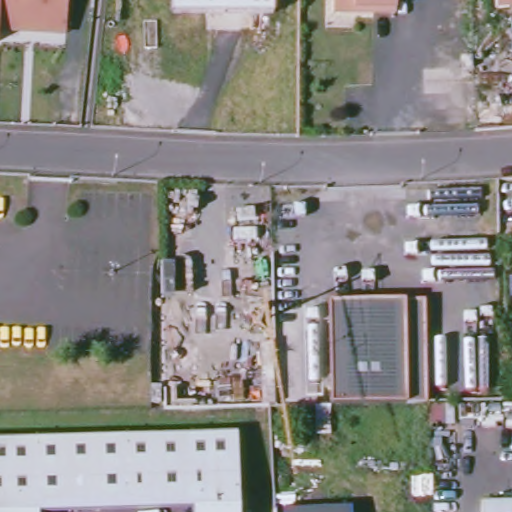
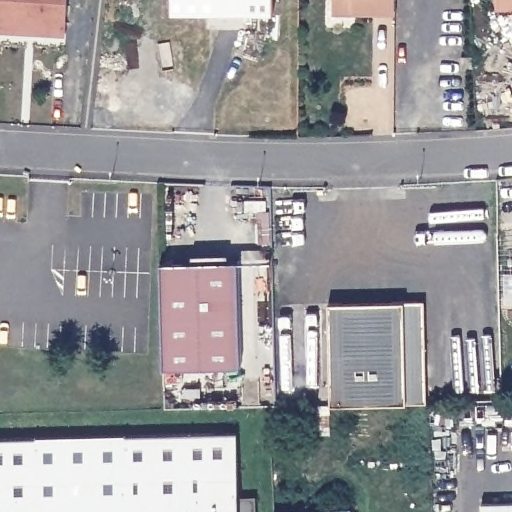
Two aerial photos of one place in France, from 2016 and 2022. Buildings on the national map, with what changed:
unchanged [(0,0),(72,0),(70,31),(69,38),(0,33),(0,0)]
unchanged [(170,10),(170,0),(271,0),(271,11),(170,10)]
unchanged [(332,0),(395,0),(395,14),(372,14),(353,14),(332,14),(332,0)]
unchanged [(501,7),(501,0),(512,0),(512,7),(501,7)]
new [(165,368),(162,263),(237,261),(240,367),(165,368)]
demolished [(157,267),(187,266),(188,296),(159,297),(157,267)]
unchanged [(328,305),(419,303),(427,310),(429,404),(330,406),(328,305)]
unchanged [(37,504),(37,512),(0,512),(0,440),(235,434),(237,497),(254,498),(254,512),(190,512),(190,499),(37,504)]
unchanged [(482,505),(512,504),(512,512),(483,512),(482,505)]
unchanged [(354,509),(354,512),(277,512),(354,509)]

